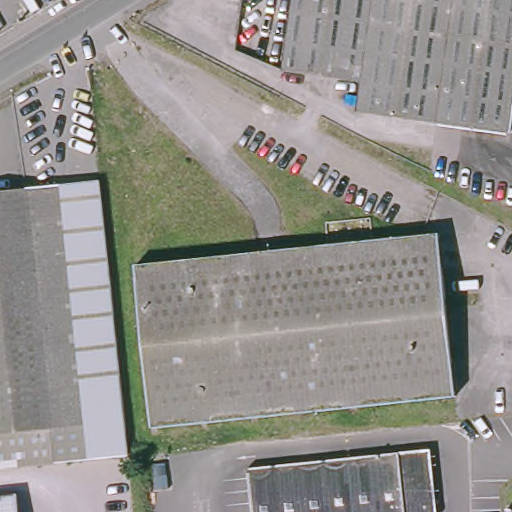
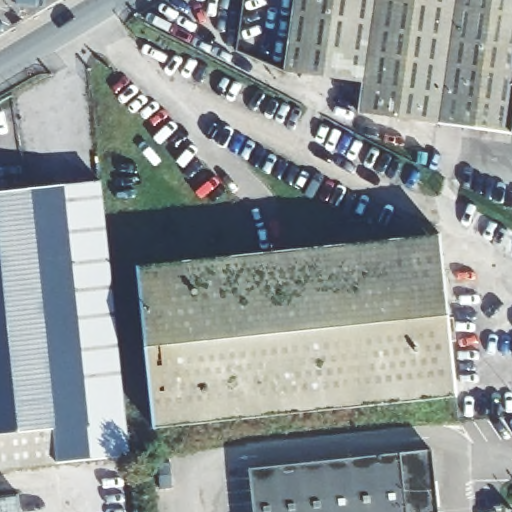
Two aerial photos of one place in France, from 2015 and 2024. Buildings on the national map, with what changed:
unchanged [(505,131),(354,108),(357,77),(279,66),(289,0),(512,0),(512,85),(505,131)]
unchanged [(74,460),(25,464),(17,465),(0,467),(0,190),(100,180),(126,455),(103,457),(74,460)]
unchanged [(455,395),(152,423),(136,260),(439,229),(455,395)]
unchanged [(435,512),(247,512),(242,467),(428,447),(435,512)]
unchanged [(0,493),(17,491),(19,512),(0,512),(0,493)]

